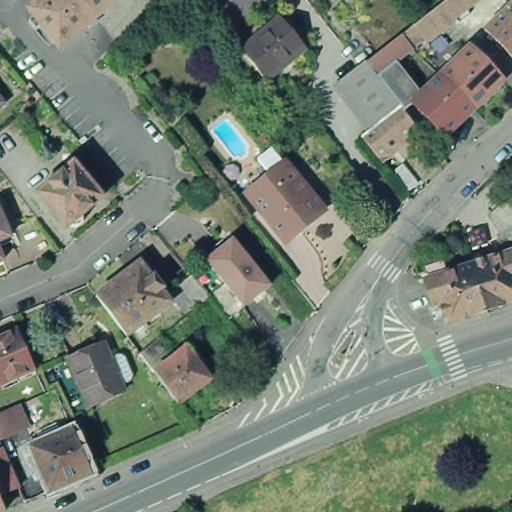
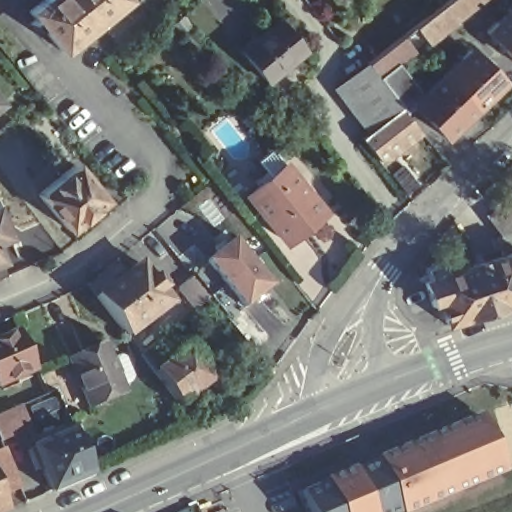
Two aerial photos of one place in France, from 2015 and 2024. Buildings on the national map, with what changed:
unchanged [(37,18),(32,11),(45,0),(125,0),(65,51),(45,27),(40,31),(33,22),(37,18)]
unchanged [(417,50),(405,37),(431,17),(444,7),(453,0),(481,0),(468,10),(473,16),(462,25),(448,37),(443,30),(417,50)]
unchanged [(493,39),(487,33),(493,27),(495,29),(512,13),(512,57),(507,52),(502,57),(488,44),(493,39)]
unchanged [(310,47),(270,80),(245,49),(284,17),(310,47)]
unchanged [(417,50),(398,66),(421,96),(423,99),(416,107),(408,114),(404,109),(369,66),(405,37),(417,50)]
unchanged [(461,57),(470,49),(475,54),(480,49),(492,62),(487,67),(504,85),(477,112),(445,77),(462,59),(461,57)]
unchanged [(404,109),(373,132),(341,87),(363,72),(369,66),(404,109)]
unchanged [(477,112),(449,140),(416,107),(423,99),(421,96),(423,94),(425,96),(445,77),(477,112)]
unchanged [(11,104),(0,113),(0,90),(11,104)]
unchanged [(408,114),(424,132),(385,164),(365,139),(373,132),(404,109),(408,114)]
unchanged [(294,247),(256,199),(280,181),(275,173),(289,162),(295,169),(310,187),(315,184),(322,193),(316,197),(332,217),(294,247)]
unchanged [(91,175),(93,174),(102,186),(102,187),(110,197),(91,214),(91,222),(85,227),(77,225),(74,229),(45,192),(81,163),(91,175)]
unchanged [(491,244),(495,242),(480,222),(508,197),(512,202),(512,234),(505,237),(511,255),(512,256),(512,285),(511,285),(512,289),(512,305),(478,317),(465,272),(498,262),(498,259),(491,244)]
unchanged [(13,237),(0,242),(0,207),(13,237)]
unchanged [(229,246),(262,290),(236,315),(196,264),(229,246)]
unchanged [(5,262),(0,264),(0,248),(5,262)]
unchanged [(145,263),(155,278),(157,276),(167,289),(165,291),(174,305),(130,337),(100,297),(145,263)]
unchanged [(470,319),(440,329),(433,310),(424,312),(417,287),(423,285),(420,273),(430,271),(440,267),(442,278),(465,272),(478,317),(470,319)]
unchanged [(190,315),(179,301),(187,294),(180,287),(195,275),(212,296),(198,307),(190,314),(190,315)]
unchanged [(22,327),(35,355),(40,365),(0,382),(0,336),(22,327)]
unchanged [(159,341),(171,356),(154,368),(142,354),(159,341)]
unchanged [(193,353),(198,349),(207,360),(201,364),(213,380),(182,404),(180,401),(157,373),(188,348),(193,353)]
unchanged [(105,350),(115,371),(126,399),(92,413),(80,386),(71,364),(105,350)]
unchanged [(54,490),(44,467),(39,469),(31,452),(36,450),(35,448),(45,444),(41,436),(54,430),(48,416),(67,408),(78,428),(77,430),(91,462),(95,473),(54,490)]
unchanged [(6,412),(14,433),(5,437),(6,439),(0,441),(0,415),(6,412)]
new [(511,472),(416,512),(312,512),(303,489),(487,412),(511,472)]
unchanged [(12,492),(0,498),(0,466),(12,492)]

